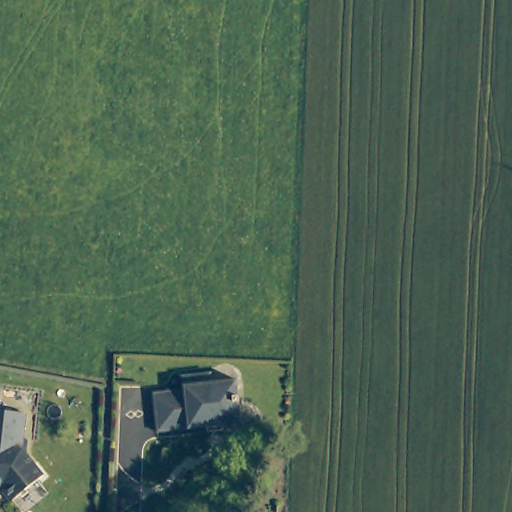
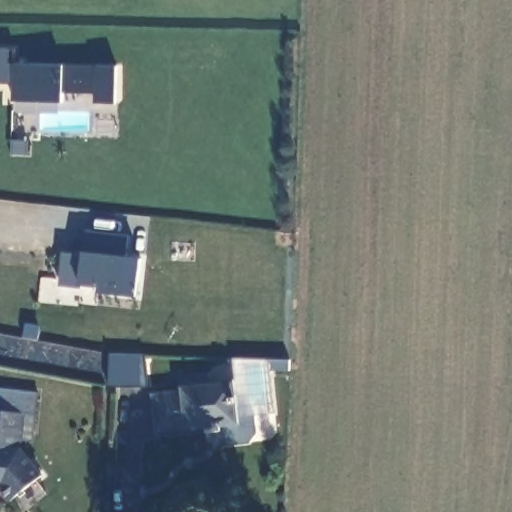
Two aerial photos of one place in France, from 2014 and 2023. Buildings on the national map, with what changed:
new [(94,102),(94,93),(62,92),(61,101),(14,99),(14,83),(0,83),(0,47),(10,48),(10,62),(116,66),(115,102),(94,102)]
new [(84,252),(86,228),(129,233),(128,254),(143,256),(138,295),(100,292),(101,287),(83,284),(82,287),(59,283),(63,249),(84,252)]
new [(146,354),(148,386),(107,385),(109,351),(146,354)]
unchanged [(221,370),(221,379),(246,377),(248,420),(165,428),(163,389),(194,385),(193,372),(221,370)]
unchanged [(29,451),(50,478),(17,502),(6,488),(0,488),(0,412),(32,414),(29,451)]

